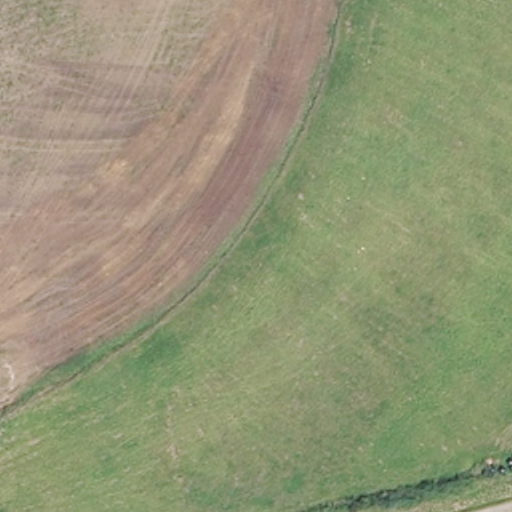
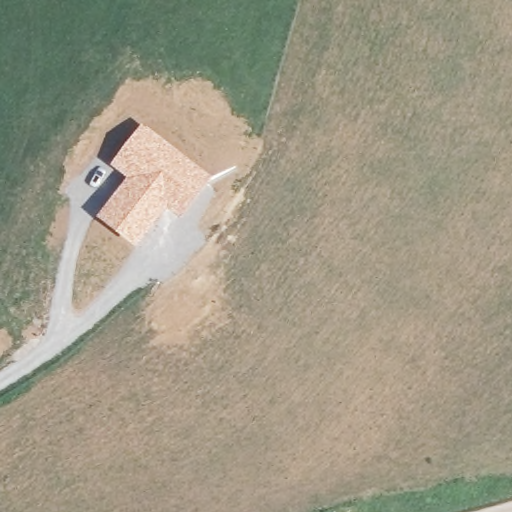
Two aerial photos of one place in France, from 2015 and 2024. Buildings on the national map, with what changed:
new [(126,178),(110,165),(142,123),(214,179),(182,219),(169,209),(136,246),(97,216),(126,178)]

